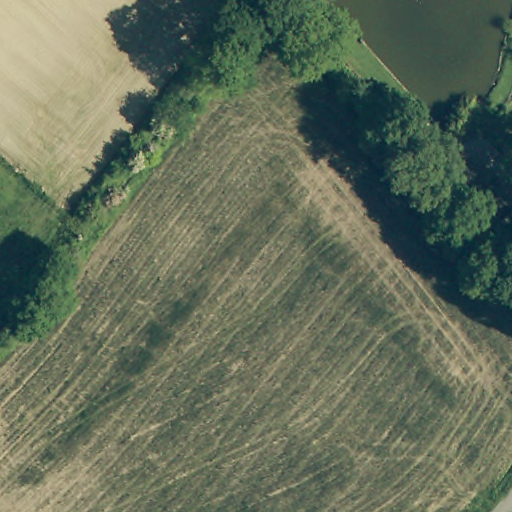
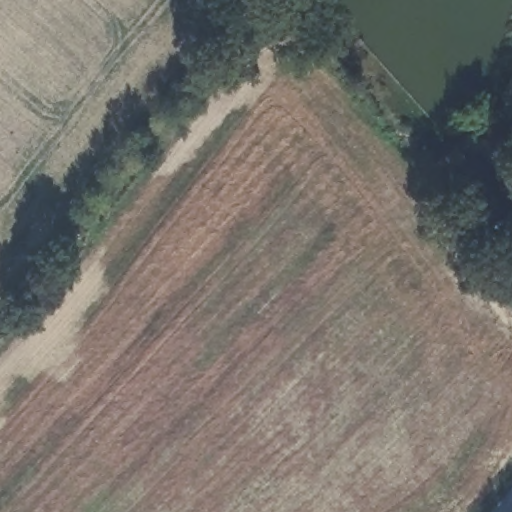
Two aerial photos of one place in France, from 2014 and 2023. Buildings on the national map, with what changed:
[]

